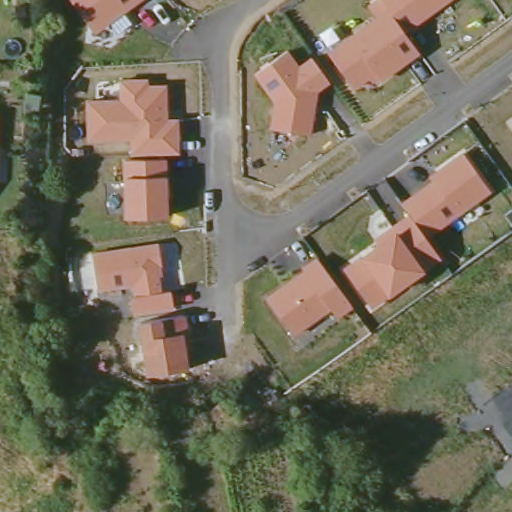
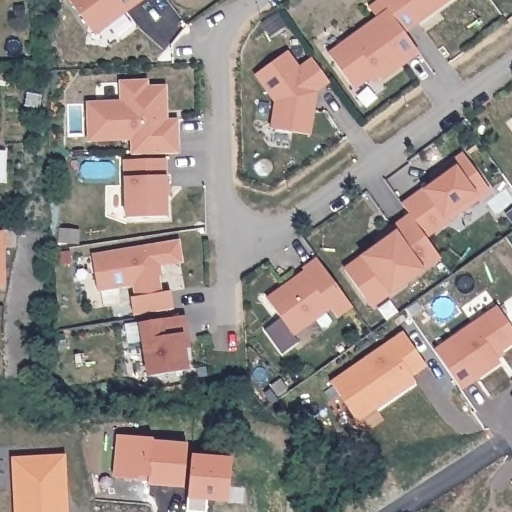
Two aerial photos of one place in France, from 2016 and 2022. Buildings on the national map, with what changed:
unchanged [(70,0),(144,0),(95,34),(70,0)]
unchanged [(420,54),(382,80),(379,76),(372,82),(369,79),(355,89),(329,50),(377,16),(370,5),(375,0),(450,0),(404,30),(420,54)]
unchanged [(269,128),(274,101),(255,76),(289,51),(299,65),(312,57),(330,83),(319,92),(312,135),(269,128)]
unchanged [(119,99),(119,80),(149,78),(149,85),(167,84),(168,118),(180,118),(180,154),(132,155),(131,142),(88,144),(87,101),(119,99)]
unchanged [(360,256),(377,244),(374,238),(409,214),(402,202),(432,180),(429,176),(463,152),(491,192),(425,236),(441,259),(425,271),(389,297),(387,295),(372,308),(344,267),(360,256)]
unchanged [(167,158),(167,174),(168,217),(124,218),(125,177),(124,159),(167,158)]
new [(3,287),(0,288),(0,232),(2,231),(3,287)]
unchanged [(159,242),(163,277),(160,277),(162,292),(172,290),(174,308),(133,315),(132,298),(135,297),(133,287),(97,292),(92,253),(159,242)]
unchanged [(304,269),(302,267),(316,257),(353,308),(339,319),(332,310),(295,335),(267,297),(304,269)]
new [(495,315),(512,339),(512,350),(493,363),(498,370),(460,397),(434,359),(495,315)]
unchanged [(162,319),(187,316),(190,334),(185,333),(188,369),(146,377),(139,323),(162,319)]
new [(360,426),(354,424),(330,391),(402,341),(425,373),(410,383),(414,388),(384,409),(381,405),(375,410),(377,414),(360,426)]
new [(120,432),(155,435),(155,439),(190,442),(186,484),(150,480),(150,474),(139,473),(139,476),(117,474),(120,432)]
new [(194,454),(234,457),(230,499),(210,497),(209,511),(189,510),(194,454)]
new [(65,456),(67,512),(15,512),(12,458),(65,456)]

